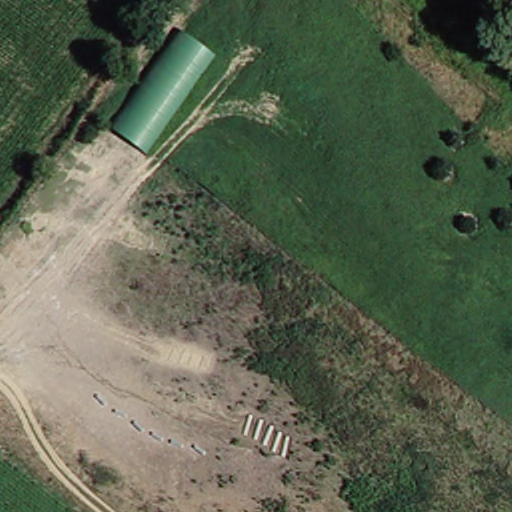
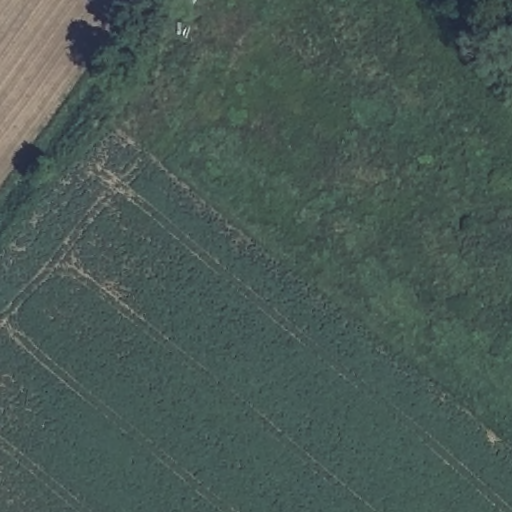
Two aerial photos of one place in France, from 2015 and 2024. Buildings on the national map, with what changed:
demolished [(217,57),(148,158),(110,134),(180,36),(217,57)]

